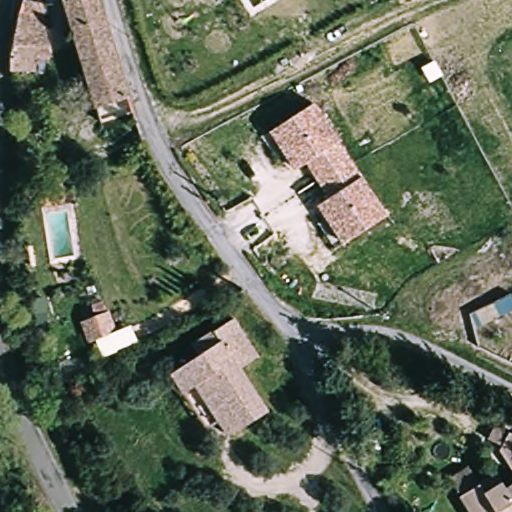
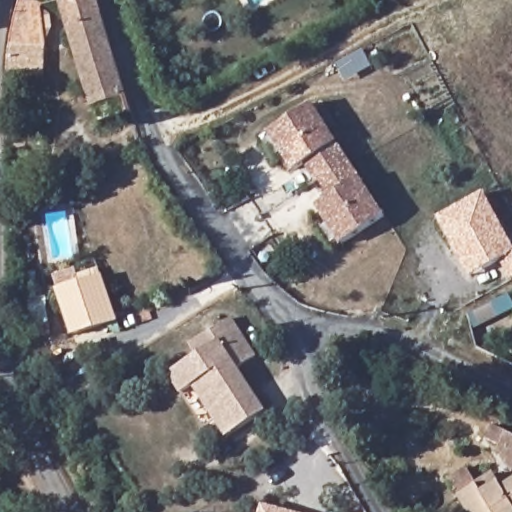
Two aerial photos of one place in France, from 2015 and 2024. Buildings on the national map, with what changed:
unchanged [(9,69),(9,60),(9,54),(10,51),(11,45),(13,35),(15,28),(17,0),(25,0),(40,3),(41,12),(43,25),(43,30),(44,46),(34,46),(34,70),(13,70),(9,69)]
unchanged [(63,28),(55,0),(91,0),(98,26),(66,36),(63,28)]
unchanged [(98,26),(126,117),(93,128),(66,36),(98,26)]
unchanged [(318,225),(328,218),(319,205),(331,197),(308,162),(296,170),(288,157),(279,163),(261,137),(275,129),(314,103),(388,217),(349,242),(336,251),(318,225)]
new [(469,276),(438,217),(484,191),(512,242),(512,280),(511,280),(499,260),(469,276)]
new [(75,268),(81,282),(104,275),(120,321),(74,339),(57,291),(53,276),(75,268)]
demolished [(73,280),(65,282),(63,273),(70,271),(73,280)]
new [(505,293),(512,302),(512,306),(479,331),(469,320),(505,293)]
unchanged [(256,356),(237,368),(266,412),(227,436),(194,385),(181,393),(169,373),(197,355),(191,345),(212,331),(231,318),(256,356)]
unchanged [(499,445),(486,438),(493,425),(512,435),(512,466),(499,445)]
unchanged [(503,487),(512,482),(512,512),(469,512),(459,495),(448,477),(466,466),(476,482),(492,472),(503,487)]
new [(263,505),(288,512),(260,512),(263,505)]

